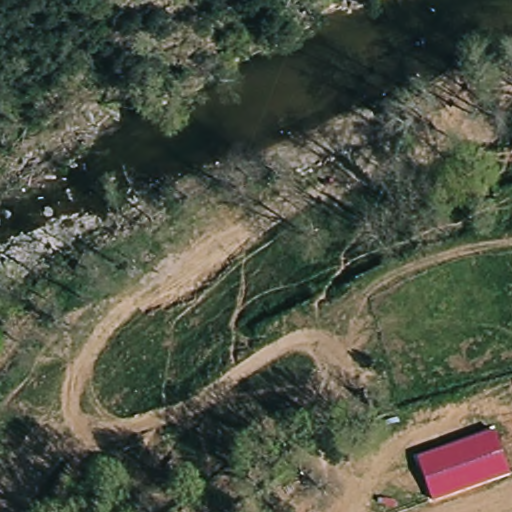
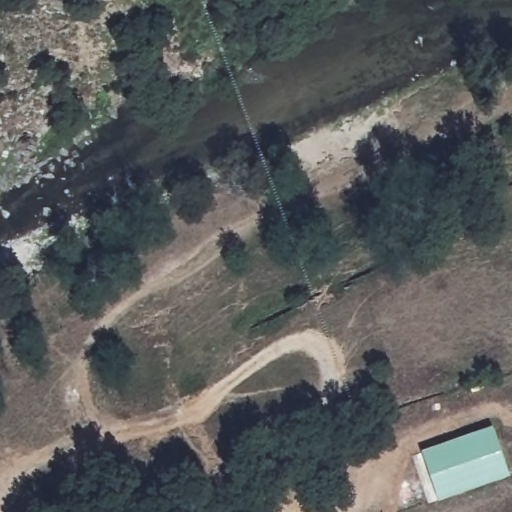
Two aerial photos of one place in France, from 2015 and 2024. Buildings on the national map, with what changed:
unchanged [(510,476),(436,502),(420,458),(493,432),(510,476)]

